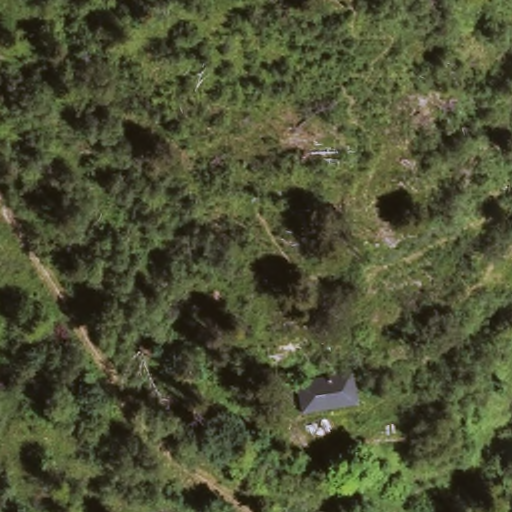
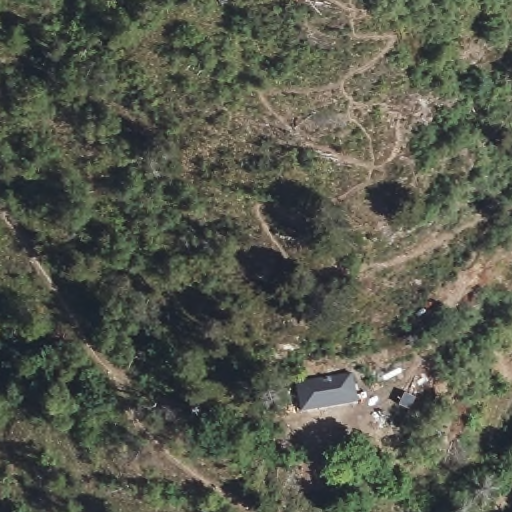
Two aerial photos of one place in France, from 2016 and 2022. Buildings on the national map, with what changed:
unchanged [(355,404),(321,408),(296,412),(292,377),(350,370),(355,404)]

